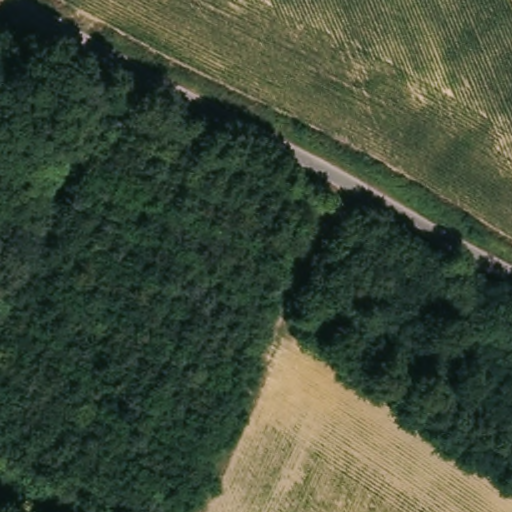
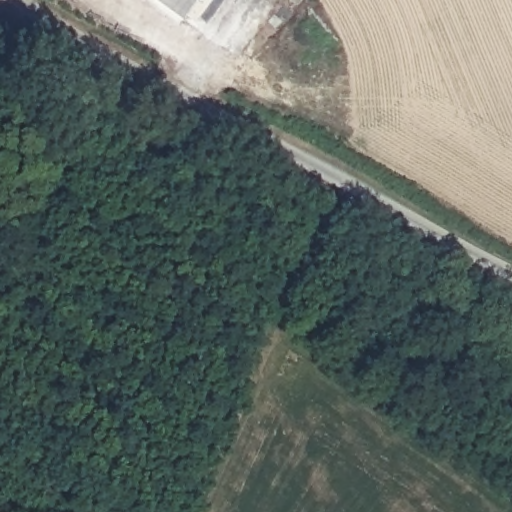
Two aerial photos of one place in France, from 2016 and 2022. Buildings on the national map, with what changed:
new [(183,20),(157,0),(198,0),(183,20)]

